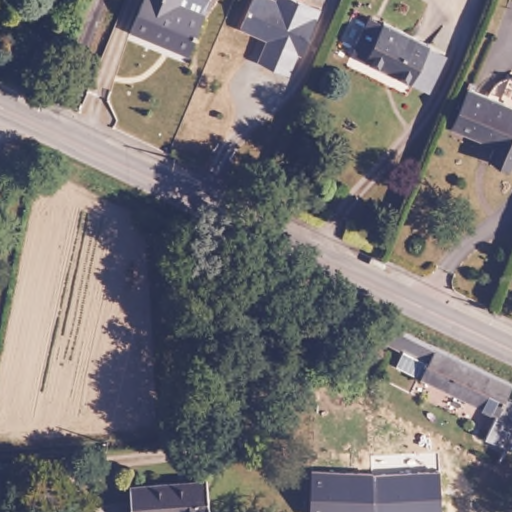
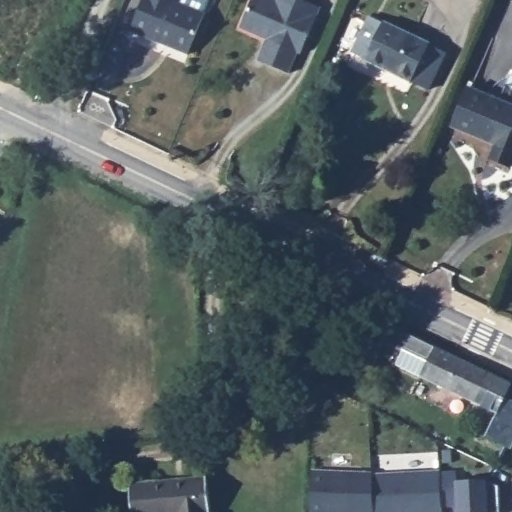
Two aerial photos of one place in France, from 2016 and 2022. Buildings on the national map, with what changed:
unchanged [(202,13),(184,54),(128,30),(140,0),(178,0),(177,2),(202,13)]
unchanged [(291,75),(260,61),(269,40),(243,27),(254,0),(279,0),(303,0),(322,9),(319,17),(303,55),(300,54),(291,75)]
unchanged [(412,79),(364,58),(357,55),(350,52),(368,13),(374,16),(382,20),(429,41),(412,79)]
unchanged [(466,85),(504,101),(512,104),(512,151),(506,165),(486,156),(491,143),(486,141),(448,125),(466,85)]
unchanged [(495,405),(440,378),(417,366),(424,349),(383,329),(385,315),(429,337),(454,350),(511,379),(506,392),(512,395),(512,438),(485,425),(495,405)]
unchanged [(204,466),(212,501),(202,503),(205,512),(184,512),(183,507),(158,512),(129,512),(123,481),(204,466)]
unchanged [(311,472),(371,473),(439,469),(441,512),(308,512),(311,472)]
new [(457,471),(457,481),(485,479),(498,486),(500,512),(457,512),(457,507),(441,507),(439,472),(457,471)]

